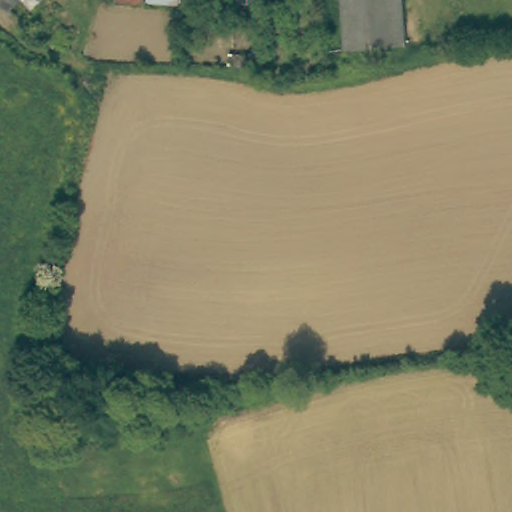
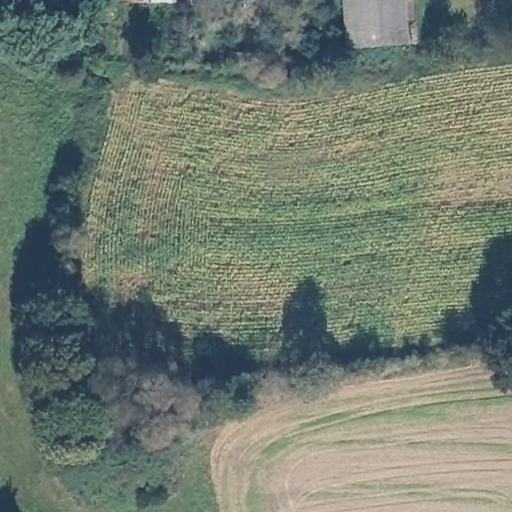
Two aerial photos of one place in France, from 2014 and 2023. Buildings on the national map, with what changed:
unchanged [(1,6),(0,4),(0,0),(9,0),(1,6)]
unchanged [(36,4),(33,0),(41,0),(36,4)]
unchanged [(278,6),(256,8),(255,0),(278,0),(278,6)]
unchanged [(349,49),(344,0),(404,0),(408,43),(349,49)]
unchanged [(248,65),(281,62),(281,74),(249,77),(248,65)]

